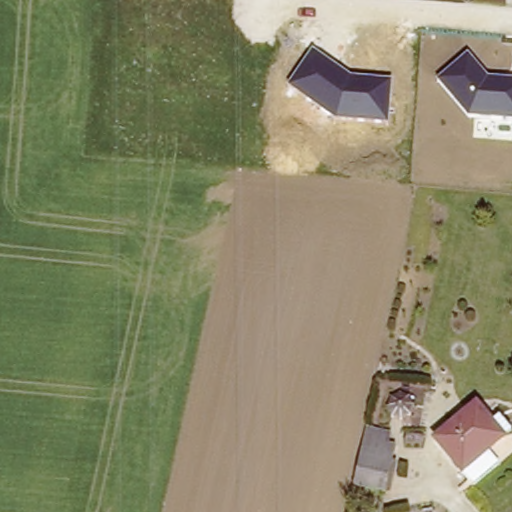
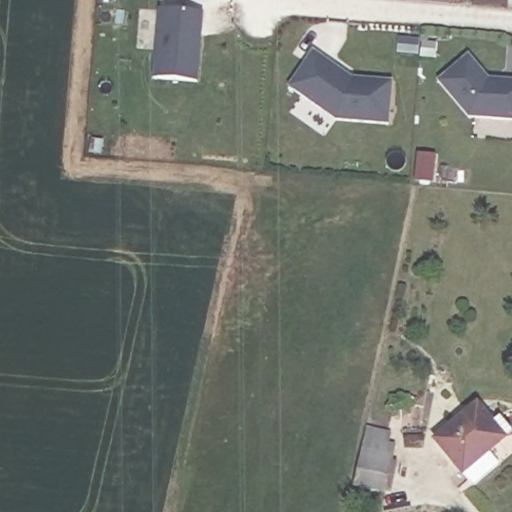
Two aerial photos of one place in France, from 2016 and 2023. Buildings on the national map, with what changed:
unchanged [(475,5),(475,0),(500,0),(500,7),(475,5)]
new [(153,78),(159,8),(204,11),(199,82),(153,78)]
unchanged [(337,120),(288,86),(312,49),(352,77),(390,79),(387,122),(337,120)]
unchanged [(468,53),(489,78),(512,80),(512,121),(469,118),(437,79),(468,53)]
unchanged [(505,424),(512,432),(512,440),(465,477),(436,441),(477,409),(495,432),(505,424)]
unchanged [(423,428),(430,430),(427,442),(420,440),(423,428)]
unchanged [(367,444),(397,452),(394,464),(387,494),(358,487),(365,457),(367,444)]

